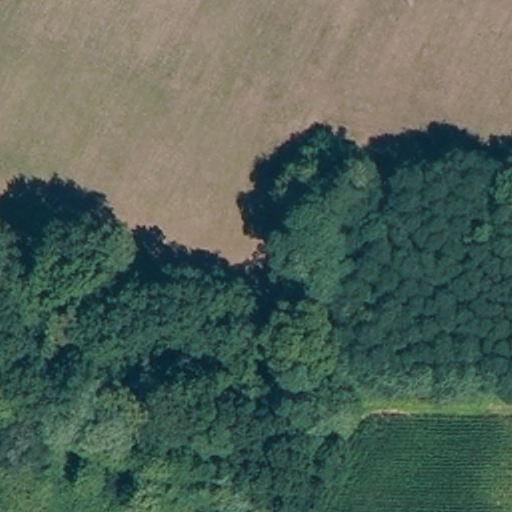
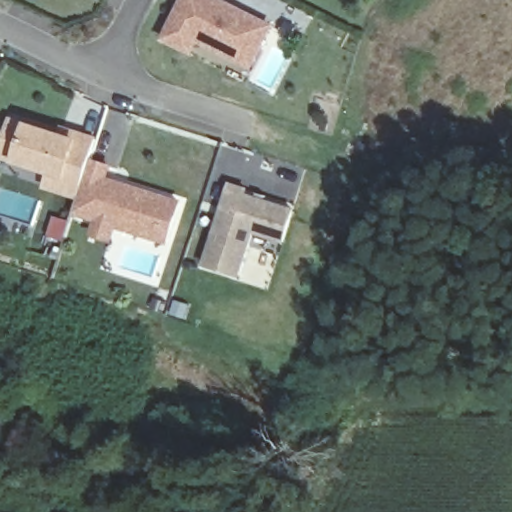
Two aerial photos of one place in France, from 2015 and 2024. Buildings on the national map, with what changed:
new [(196,37),(190,50),(164,37),(183,0),(218,0),(235,8),(241,11),(269,25),(257,50),(250,65),(236,57),(196,37)]
new [(295,26),(290,36),(280,31),(285,21),(295,26)]
new [(79,200),(44,188),(47,175),(13,162),(0,160),(0,146),(11,117),(27,122),(80,139),(76,154),(114,165),(110,177),(184,201),(170,245),(118,229),(115,243),(90,237),(94,222),(75,217),(79,200)]
new [(231,176),(248,181),(246,186),(296,200),(287,231),(256,222),(244,267),(209,258),(231,176)]
unchanged [(107,342),(103,355),(79,347),(83,332),(107,342)]

